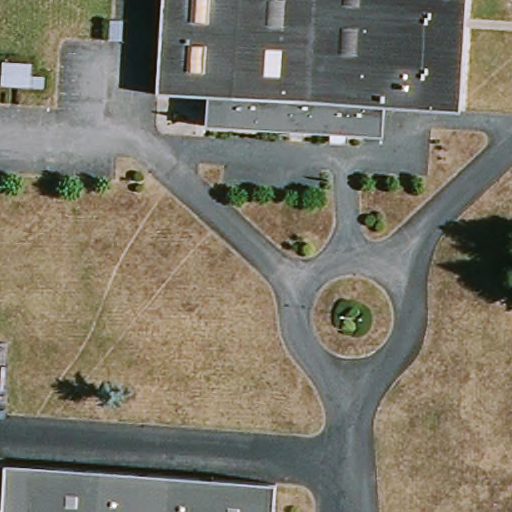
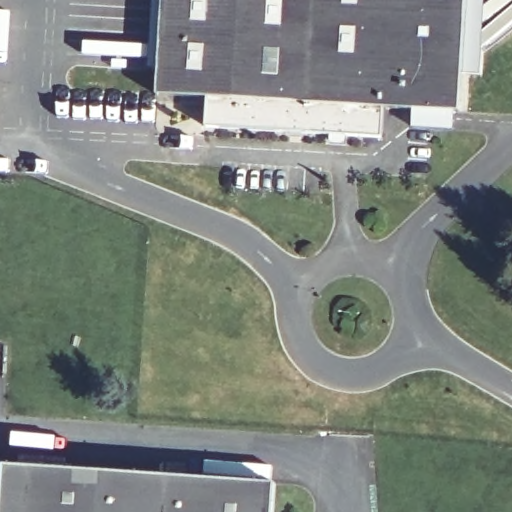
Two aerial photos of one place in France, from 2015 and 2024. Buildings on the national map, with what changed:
unchanged [(467,0),(460,115),(385,111),(383,140),(206,130),(208,101),(157,97),(163,0),(467,0)]
unchanged [(6,468),(275,487),(274,512),(0,512),(0,468),(6,468)]

